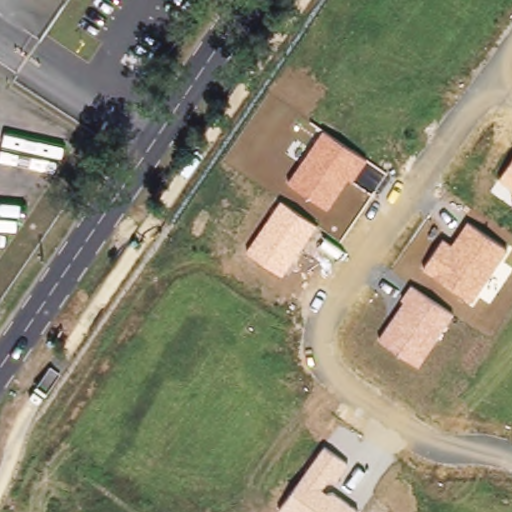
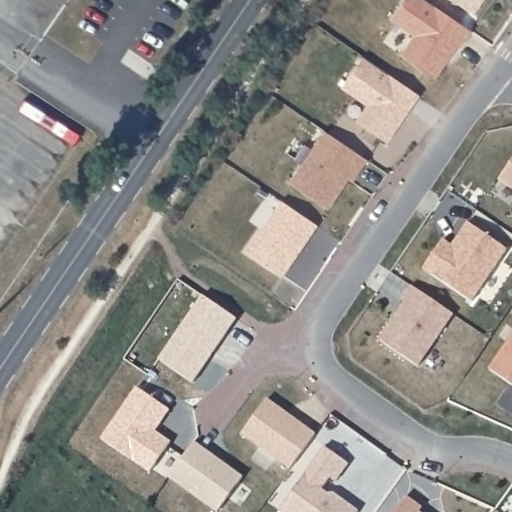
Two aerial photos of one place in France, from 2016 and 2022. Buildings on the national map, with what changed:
new [(389,20),(404,0),(424,0),(469,31),(434,79),(401,55),(412,36),(389,20)]
new [(362,57),(419,95),(386,143),(355,122),(366,105),(341,88),(362,57)]
unchanged [(288,184),(325,130),(367,158),(353,181),(347,177),(326,209),(288,184)]
unchanged [(512,161),(512,189),(498,180),(512,161)]
unchanged [(245,251),(280,200),(317,225),(281,276),(245,251)]
unchanged [(421,269),(442,239),(451,244),(467,221),(507,249),(471,302),(421,269)]
unchanged [(378,339),(404,301),(400,298),(412,284),(453,313),(417,367),(378,339)]
new [(158,360),(202,294),(237,318),(192,384),(158,360)]
new [(512,335),(512,384),(490,367),(512,335)]
new [(137,387),(170,410),(156,431),(172,442),(151,472),(102,440),(137,387)]
new [(268,398),(316,433),(291,468),(242,433),(268,398)]
new [(195,442),(244,477),(219,512),(217,512),(170,478),(195,442)]
unchanged [(278,510),(325,446),(348,464),(335,483),(328,480),(322,490),(328,495),(333,492),(358,510),(357,512),(282,512),(278,510)]
new [(407,496),(423,508),(421,512),(396,512),(407,496)]

